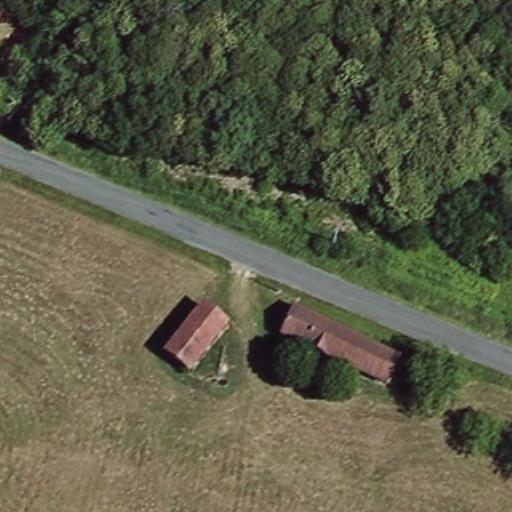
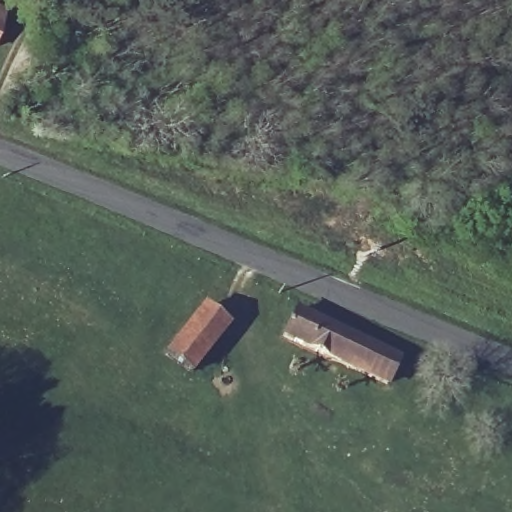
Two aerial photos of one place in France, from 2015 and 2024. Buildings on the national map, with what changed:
unchanged [(228,323),(189,372),(166,352),(200,304),(228,323)]
unchanged [(394,348),(384,375),(283,336),(294,309),(394,348)]

